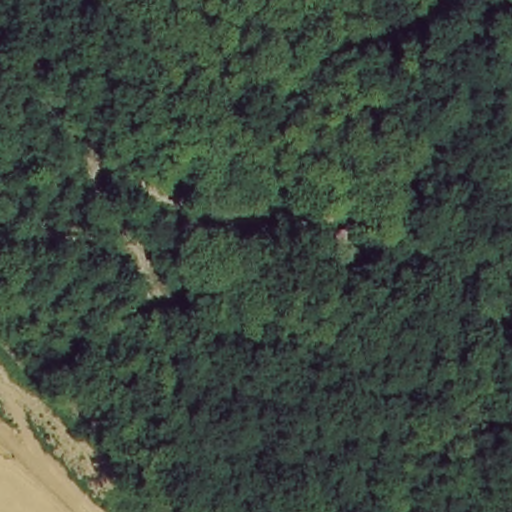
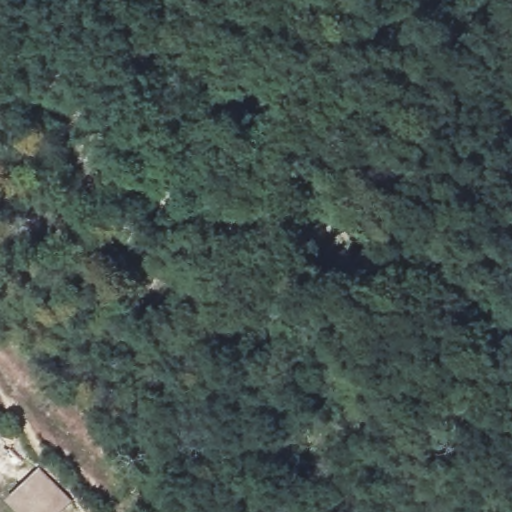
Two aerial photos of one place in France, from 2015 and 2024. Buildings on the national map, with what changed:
new [(39,468),(72,502),(62,512),(14,512),(4,502),(39,468)]

